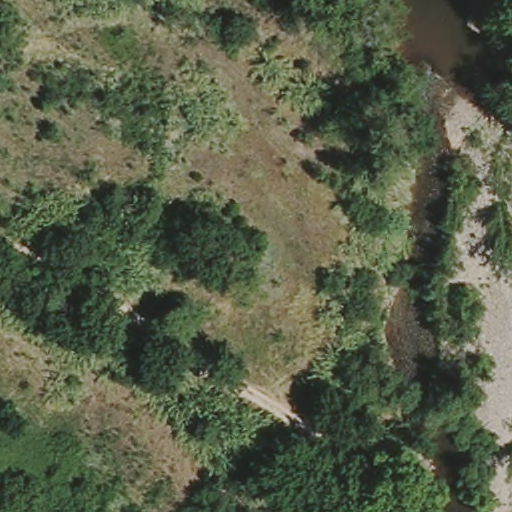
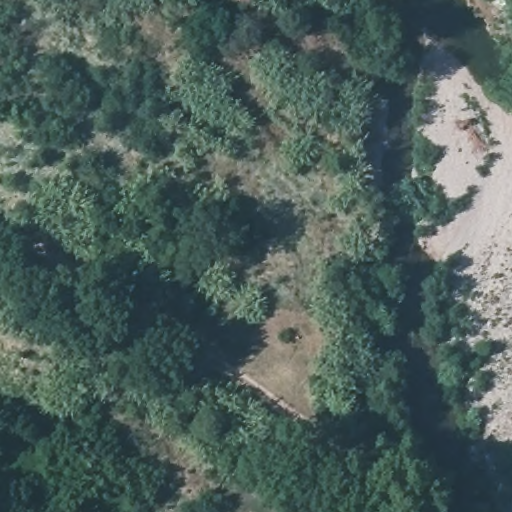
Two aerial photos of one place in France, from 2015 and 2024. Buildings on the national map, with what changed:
unchanged [(366,507),(364,512),(349,512),(344,509),(351,498),(366,507)]

